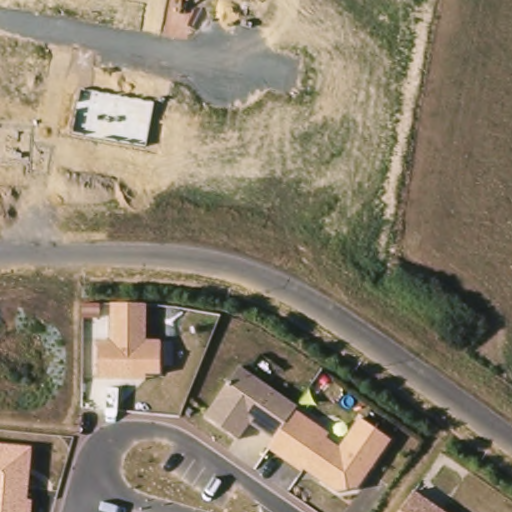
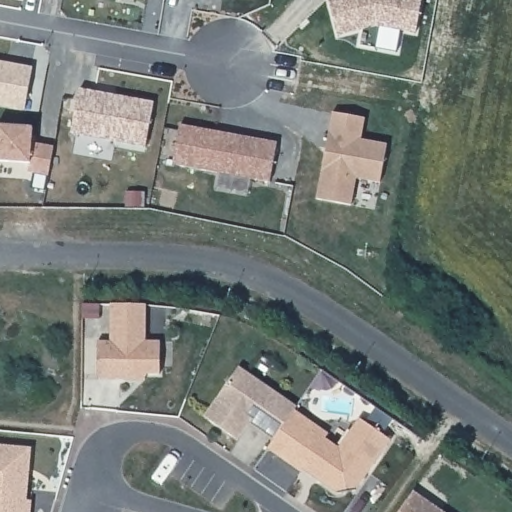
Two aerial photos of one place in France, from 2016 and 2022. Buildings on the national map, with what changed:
new [(95,0),(147,0),(145,9),(95,0)]
new [(227,0),(250,0),(249,4),(227,0)]
new [(423,0),(415,40),(376,34),(337,44),(327,5),(347,0),(423,0)]
new [(25,119),(0,114),(0,71),(32,77),(25,119)]
new [(78,89),(152,102),(145,146),(70,133),(78,89)]
new [(330,112),(361,117),(357,139),(383,144),(376,181),(352,177),(348,204),(313,198),(330,112)]
new [(178,125),(274,141),(267,180),(171,163),(178,125)]
new [(32,152),(54,155),(49,184),(30,181),(30,172),(0,170),(0,133),(34,135),(32,152)]
unchanged [(97,340),(111,340),(112,305),(145,305),(144,341),(162,342),(160,371),(145,371),(145,379),(99,380),(97,340)]
unchanged [(237,368),(295,408),(293,414),(326,435),(322,441),(336,451),(355,420),(387,442),(348,500),(268,448),(273,442),(248,425),(235,441),(201,420),(237,368)]
unchanged [(0,444),(34,447),(29,512),(0,512),(0,444)]
unchanged [(412,494),(439,512),(399,512),(412,494)]

